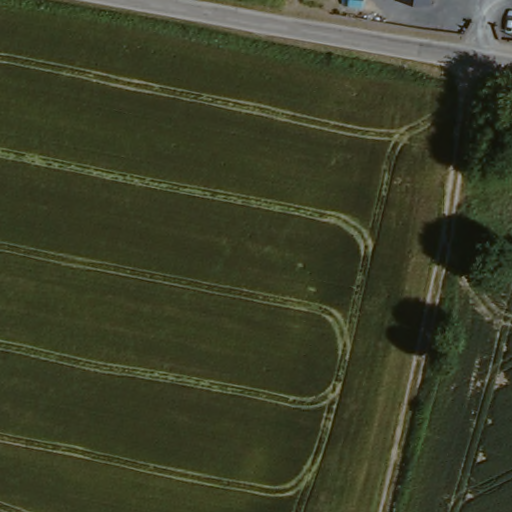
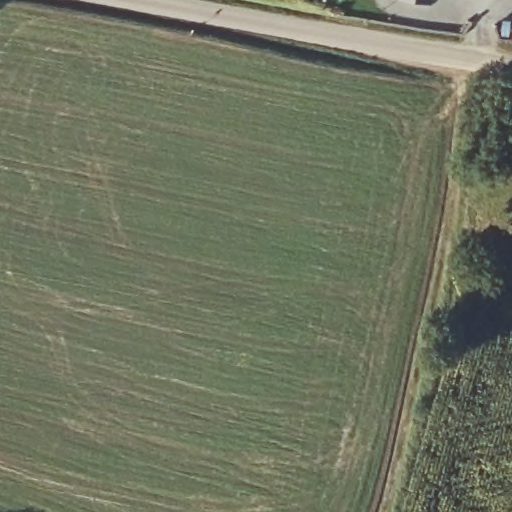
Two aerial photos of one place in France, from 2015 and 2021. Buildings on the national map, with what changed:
unchanged [(387,1),(387,0),(422,0),(420,9),(387,1)]

